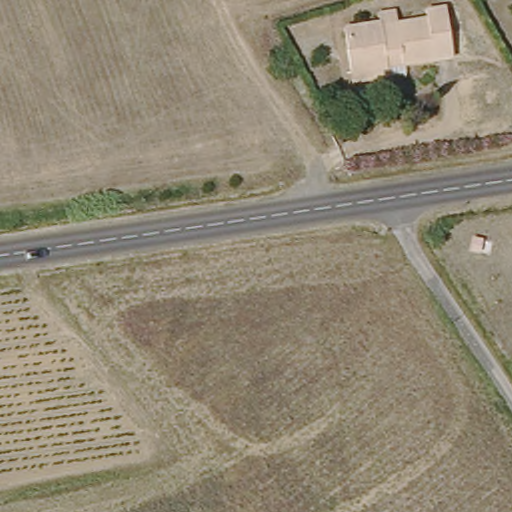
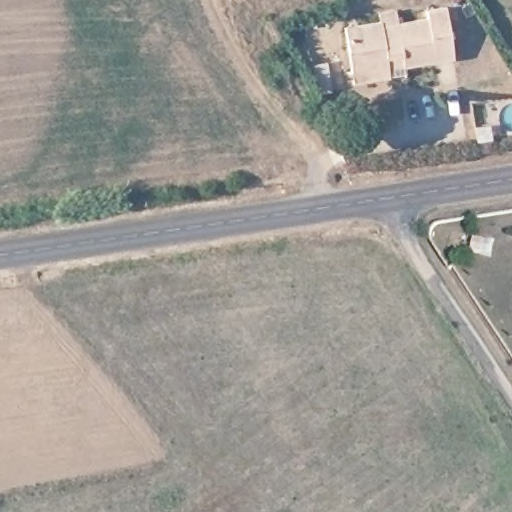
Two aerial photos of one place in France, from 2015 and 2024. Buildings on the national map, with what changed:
unchanged [(364,78),(363,69),(360,46),(348,46),(345,26),(376,20),(382,23),(427,15),(425,5),(444,3),(450,46),(452,55),(433,58),(402,63),(386,66),(388,75),(364,78)]

